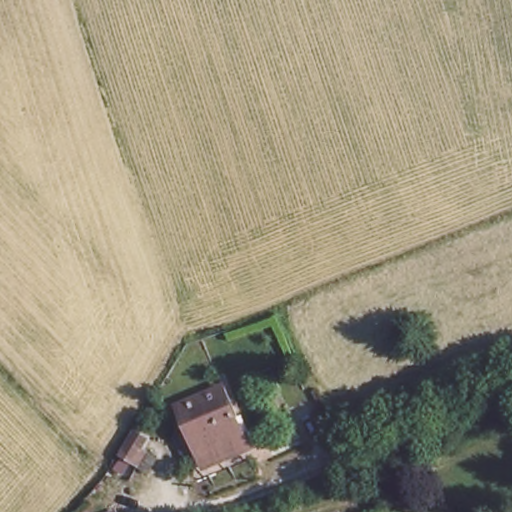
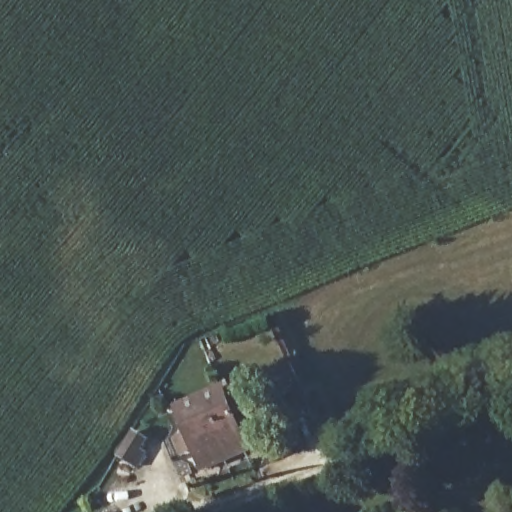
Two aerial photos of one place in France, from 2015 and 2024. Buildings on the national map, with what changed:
unchanged [(202,460),(178,400),(220,385),(242,443),(202,460)]
unchanged [(152,432),(137,455),(127,448),(142,426),(152,432)]

